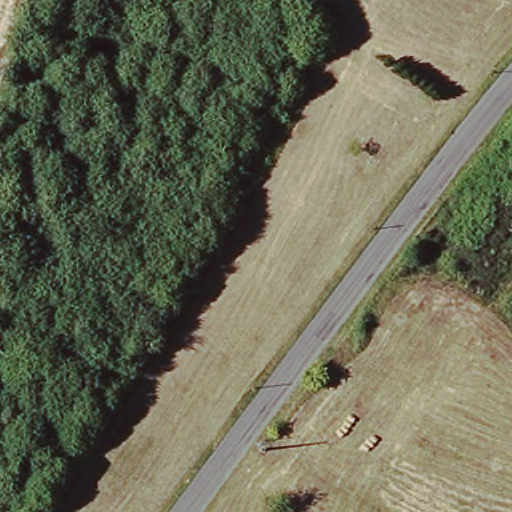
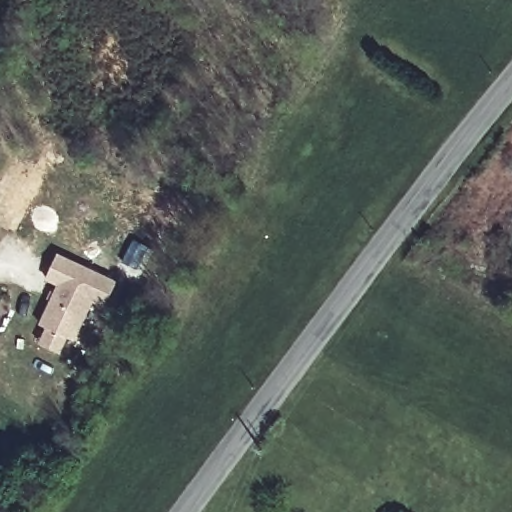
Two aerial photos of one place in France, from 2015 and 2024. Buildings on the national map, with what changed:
new [(60,285),(46,280),(57,256),(117,283),(106,306),(93,300),(74,341),(42,326),(60,285)]

